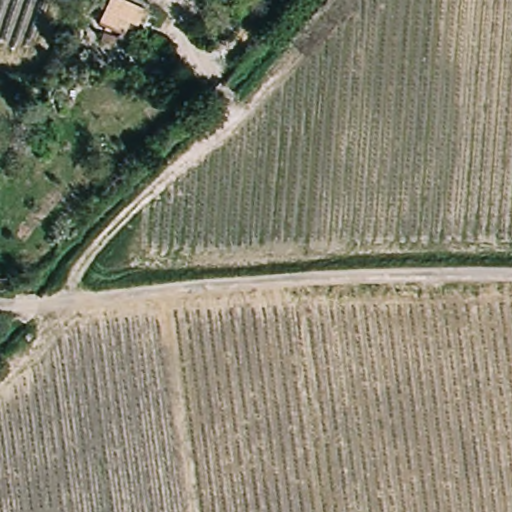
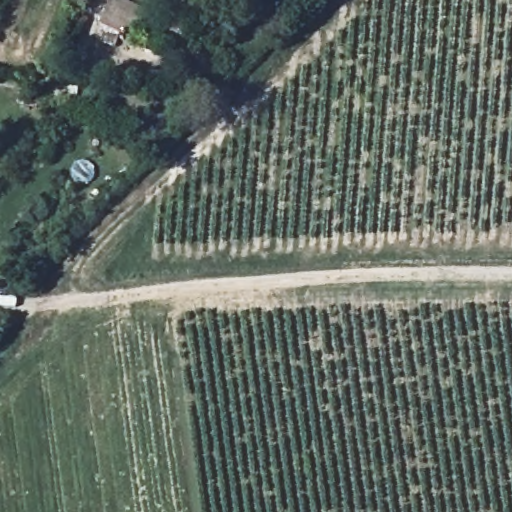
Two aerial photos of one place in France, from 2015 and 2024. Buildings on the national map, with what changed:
unchanged [(113,0),(128,0),(151,11),(139,41),(101,26),(113,0)]

